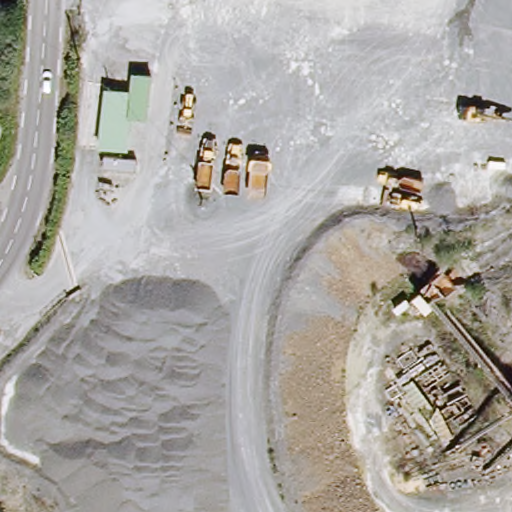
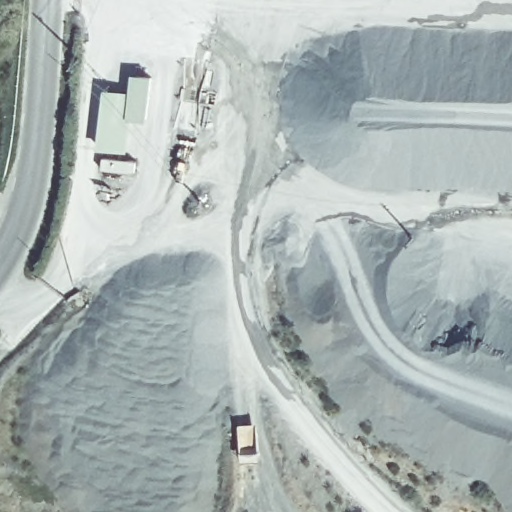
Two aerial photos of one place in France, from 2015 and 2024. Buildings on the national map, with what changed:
unchanged [(129,123),(127,146),(95,142),(98,92),(131,94),(133,78),(160,81),(156,126),(129,123)]

